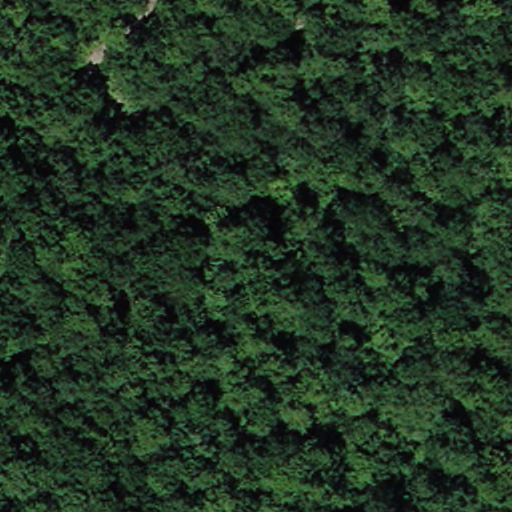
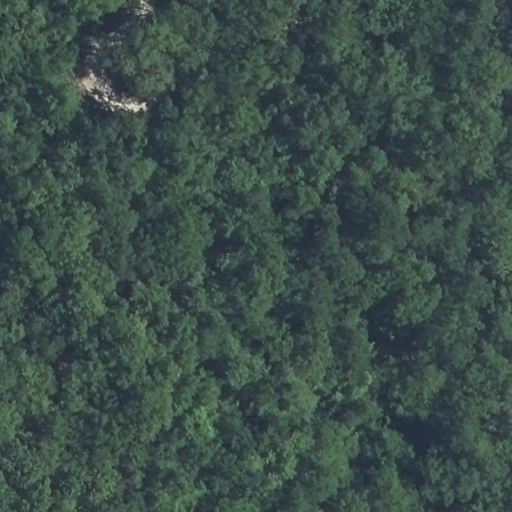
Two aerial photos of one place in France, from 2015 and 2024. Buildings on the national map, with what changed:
[]

